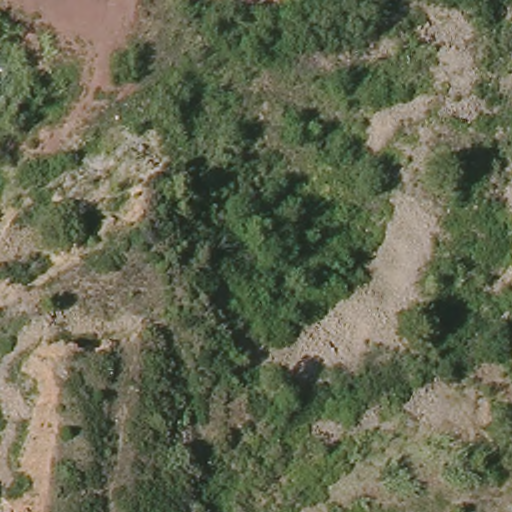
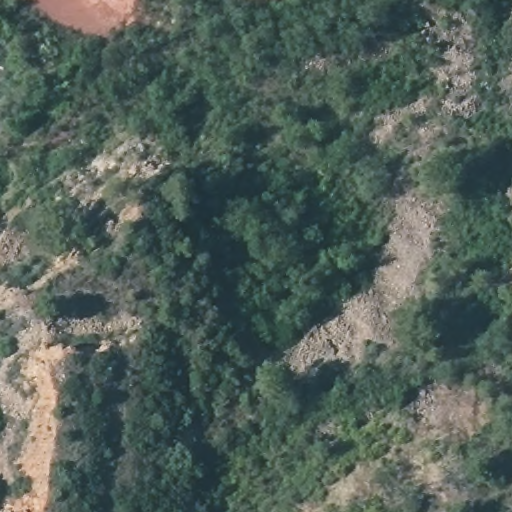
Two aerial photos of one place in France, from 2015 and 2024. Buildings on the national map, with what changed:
unchanged [(186,323),(179,308),(197,302),(199,318),(186,323)]

